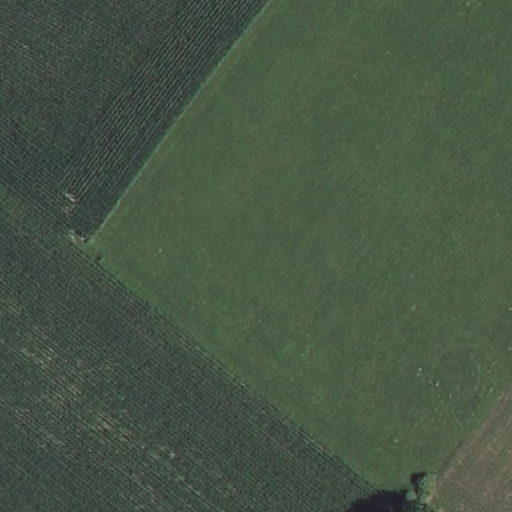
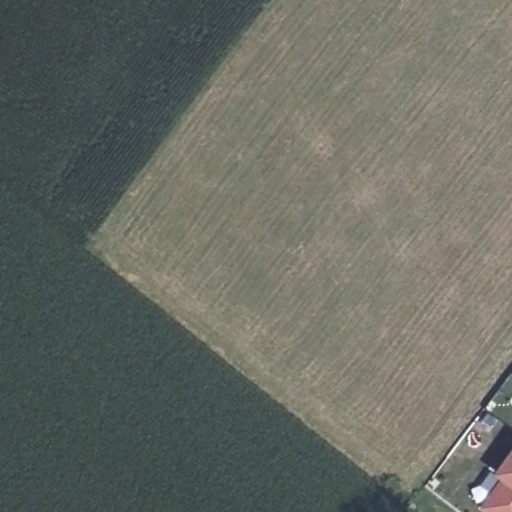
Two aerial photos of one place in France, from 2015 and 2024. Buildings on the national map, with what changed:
new [(481,509),(502,479),(497,475),(512,454),(512,512),(485,512),(481,509)]

